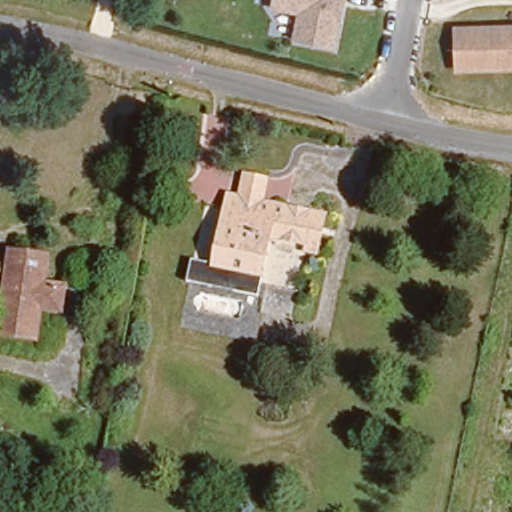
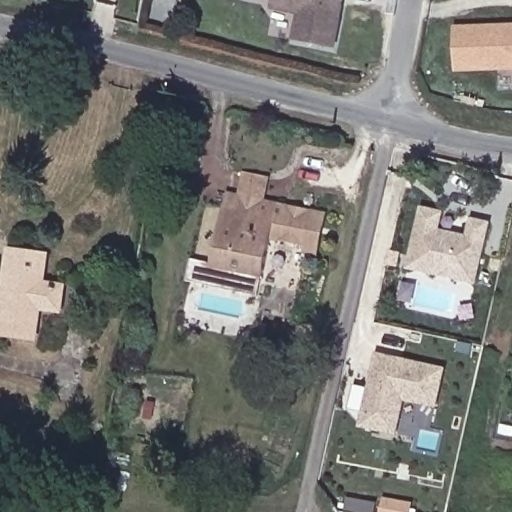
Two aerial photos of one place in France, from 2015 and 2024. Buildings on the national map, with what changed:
unchanged [(335,46),(292,40),(295,15),(270,9),(272,0),(344,0),(335,46)]
unchanged [(512,25),(512,70),(454,71),(455,27),(512,25)]
unchanged [(231,193),(240,193),(245,172),(268,175),(265,200),(260,213),(226,206),(231,193)]
unchanged [(285,235),(274,233),(265,273),(215,265),(226,206),(260,213),(265,200),(290,206),(285,235)]
unchanged [(308,248),(310,241),(285,235),(290,206),(327,213),(320,250),(308,248)]
new [(421,211),(437,214),(441,229),(487,237),(476,286),(407,270),(421,211)]
demolished [(301,290),(269,286),(276,243),(308,248),(301,290)]
unchanged [(47,308),(34,307),(31,337),(0,334),(0,270),(2,250),(40,256),(38,281),(50,284),(59,286),(55,309),(47,308)]
unchanged [(260,294),(189,280),(190,259),(215,265),(265,273),(260,294)]
new [(360,428),(366,402),(363,401),(365,396),(367,396),(377,352),(445,367),(436,409),(405,402),(396,434),(360,428)]
new [(383,504),(384,497),(412,502),(410,512),(348,512),(345,511),(348,497),(383,504)]

